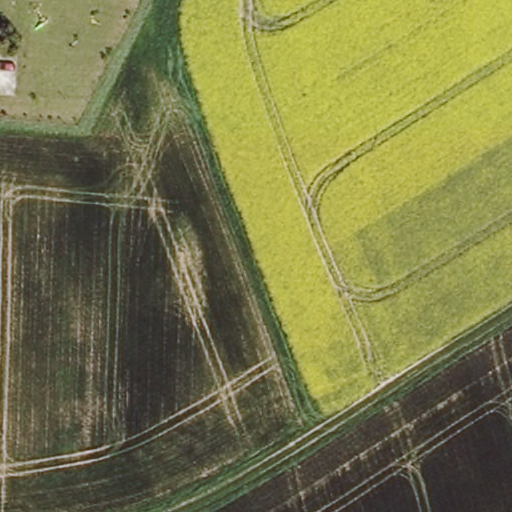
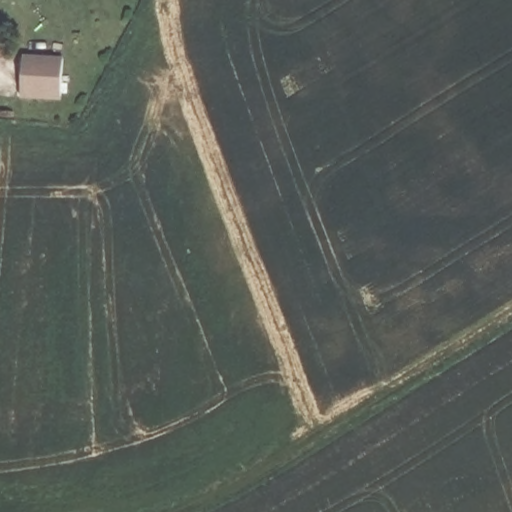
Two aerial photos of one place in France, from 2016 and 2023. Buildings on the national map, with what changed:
new [(25,54),(65,56),(62,99),(22,96),(25,54)]

